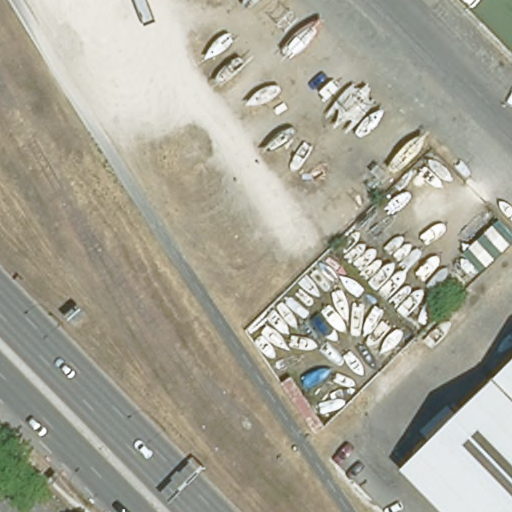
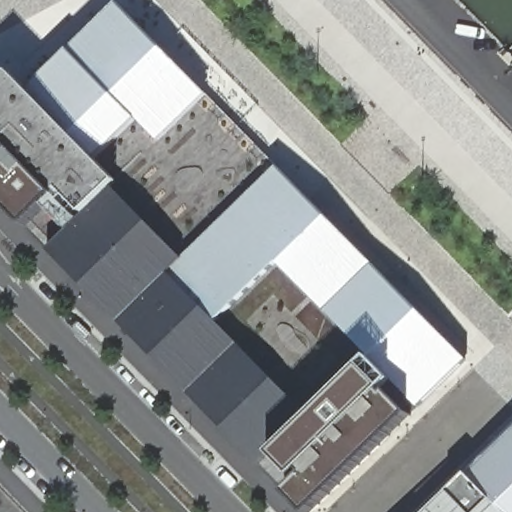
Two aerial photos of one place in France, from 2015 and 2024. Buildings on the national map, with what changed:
new [(84,286),(50,251),(50,250),(27,226),(26,228),(0,201),(0,88),(12,76),(27,90),(67,50),(116,3),(162,49),(206,95),(277,169),(324,217),(372,265),(417,311),(467,361),(418,407),(392,380),(384,388),(382,390),(386,394),(389,392),(412,415),(312,512),(304,512),(286,492),(259,465),(224,430),(189,394),(154,358),(120,323),(84,286)]
demolished [(416,457),(512,363),(512,512),(469,512),(416,457)]
new [(447,492),(440,485),(462,464),(468,471),(466,473),(476,483),(491,468),(482,457),(509,432),(512,429),(512,512),(426,512),(447,492)]

